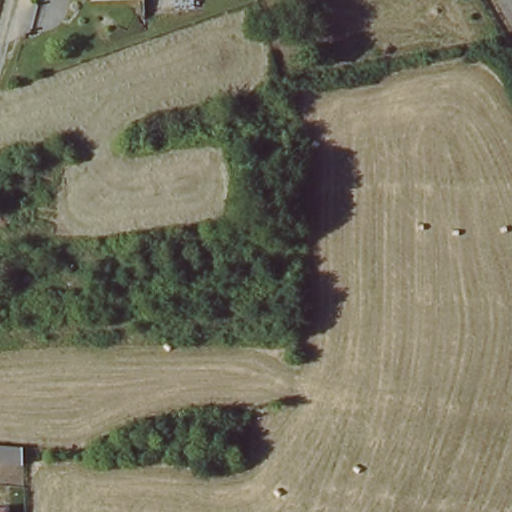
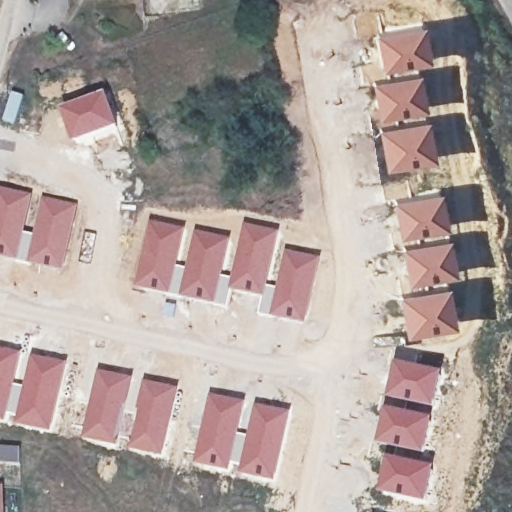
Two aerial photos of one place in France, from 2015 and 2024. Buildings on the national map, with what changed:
new [(424,20),(430,58),(380,67),(373,31),(424,20)]
new [(419,70),(425,107),(377,116),(370,79),(419,70)]
new [(107,95),(119,127),(74,144),(61,111),(107,95)]
new [(427,116),(435,158),(384,167),(376,126),(427,116)]
new [(24,230),(33,232),(26,263),(0,257),(0,186),(32,194),(24,230)]
new [(441,187),(446,225),(397,235),(390,197),(441,187)]
new [(33,232),(41,196),(78,203),(63,271),(26,263),(33,232)]
new [(146,220),(183,227),(176,262),(184,264),(193,230),(228,237),(221,274),(231,276),(229,291),(231,291),(227,308),(131,285),(146,220)]
new [(231,276),(243,223),(279,231),(268,283),(261,298),(231,291),(229,291),(231,276)]
new [(448,234),(454,271),(406,280),(399,243),(448,234)]
new [(261,298),(268,283),(276,285),(284,249),(319,257),(306,325),(257,315),(261,298)]
new [(448,282),(454,325),(404,332),(397,292),(448,282)]
new [(396,362),(445,372),(437,411),(389,402),(396,362)]
new [(98,371),(135,378),(133,390),(139,391),(135,418),(126,451),(83,441),(98,371)]
new [(135,418),(139,391),(141,380),(178,387),(163,458),(126,451),(135,418)]
new [(208,394),(291,411),(276,483),(193,466),(208,394)]
new [(387,409),(434,420),(427,456),(379,447),(387,409)]
unchanged [(16,476),(0,476),(0,451),(15,451),(16,476)]
new [(389,458),(436,468),(428,506),(381,495),(389,458)]

